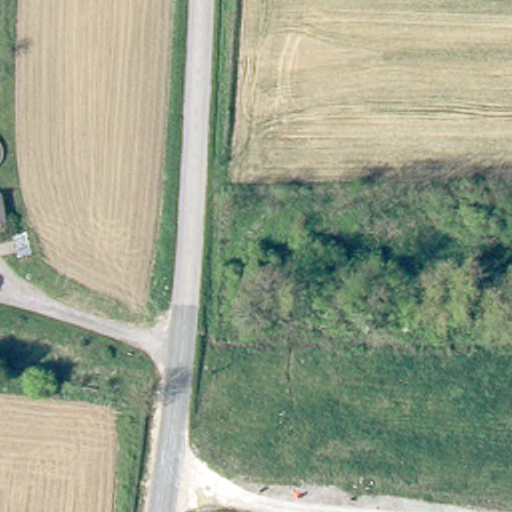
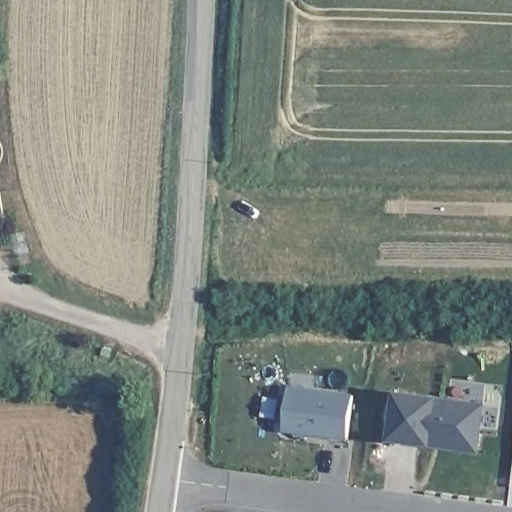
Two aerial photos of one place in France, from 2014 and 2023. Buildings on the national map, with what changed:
unchanged [(8,218),(0,220),(0,191),(3,190),(8,218)]
new [(288,387),(352,396),(347,438),(283,431),(288,387)]
new [(480,406),(475,450),(427,443),(392,437),(396,396),(432,401),(480,406)]

